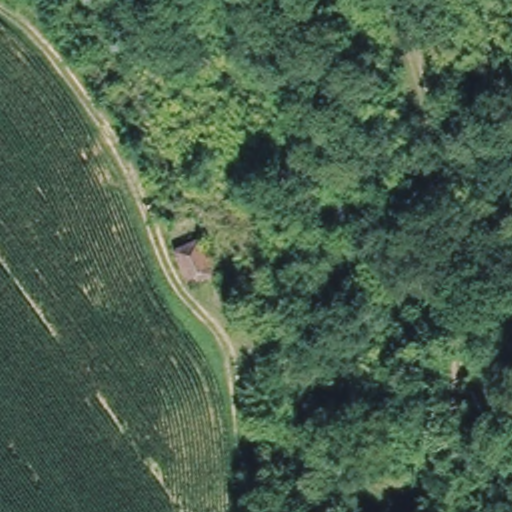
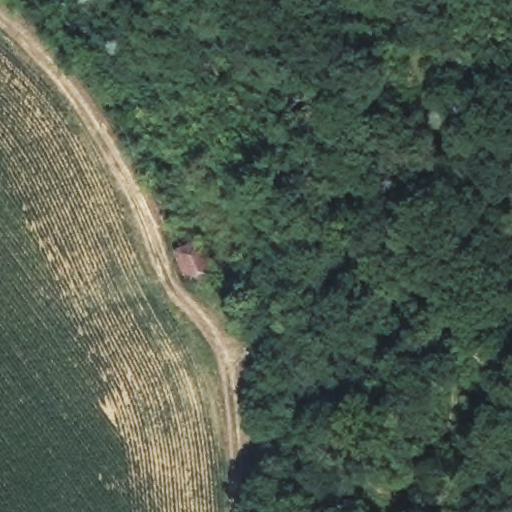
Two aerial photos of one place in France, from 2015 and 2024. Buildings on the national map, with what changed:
unchanged [(172,250),(200,237),(216,273),(189,286),(172,250)]

